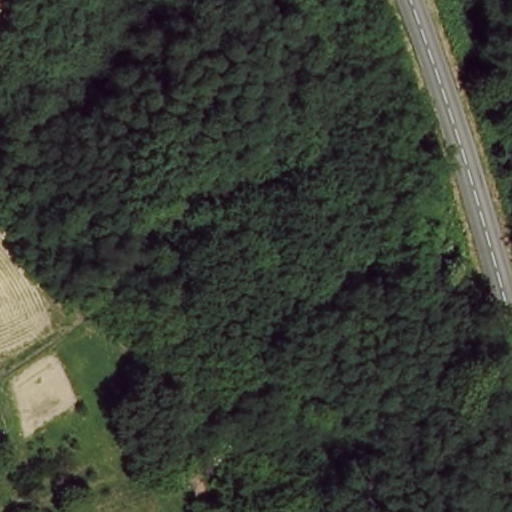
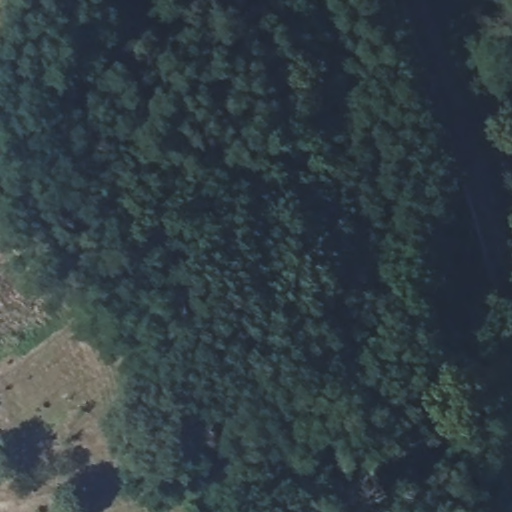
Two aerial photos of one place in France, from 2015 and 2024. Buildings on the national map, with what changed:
[]

